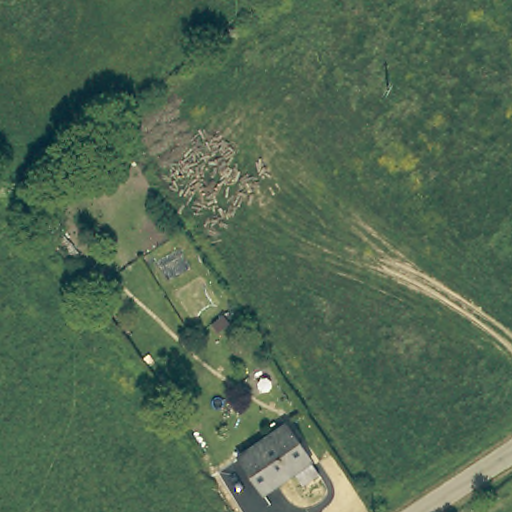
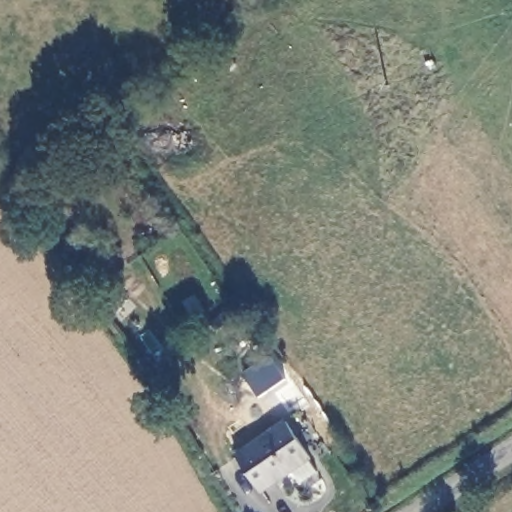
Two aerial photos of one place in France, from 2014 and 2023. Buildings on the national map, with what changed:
unchanged [(303,478),(296,466),(261,488),(239,453),(290,420),(313,455),(321,468),(303,478)]

